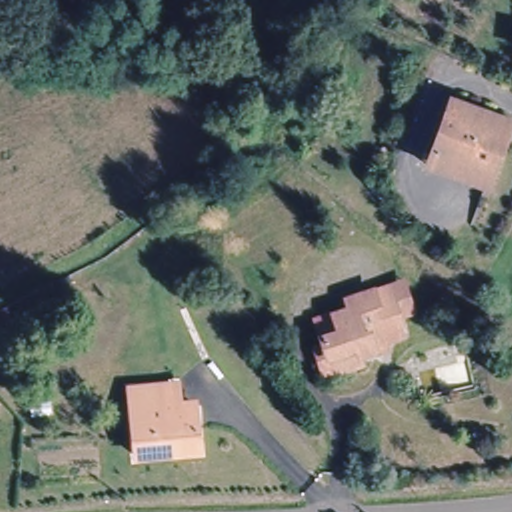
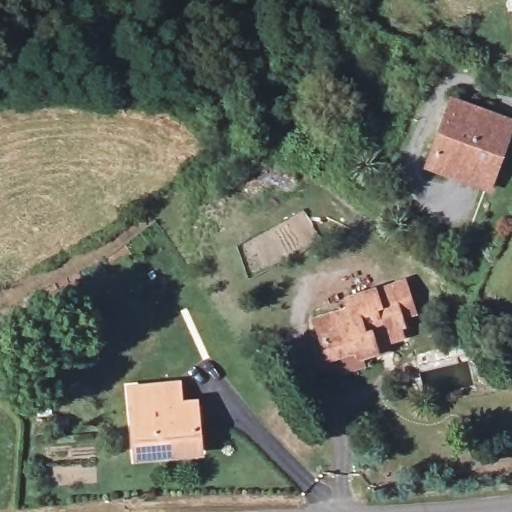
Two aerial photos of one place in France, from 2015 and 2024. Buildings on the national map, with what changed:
unchanged [(512,119),(512,126),(496,170),(436,149),(453,99),(512,119)]
unchanged [(496,170),(491,186),(430,165),(436,149),(496,170)]
unchanged [(320,365),(315,346),(314,340),(322,337),(314,310),(346,301),(343,290),(387,277),(410,272),(416,301),(394,306),(397,319),(389,321),(392,334),(371,339),(351,343),(354,355),(320,365)]
unchanged [(132,458),(124,393),(156,390),(169,388),(171,407),(186,406),(188,425),(191,452),(132,458)]

